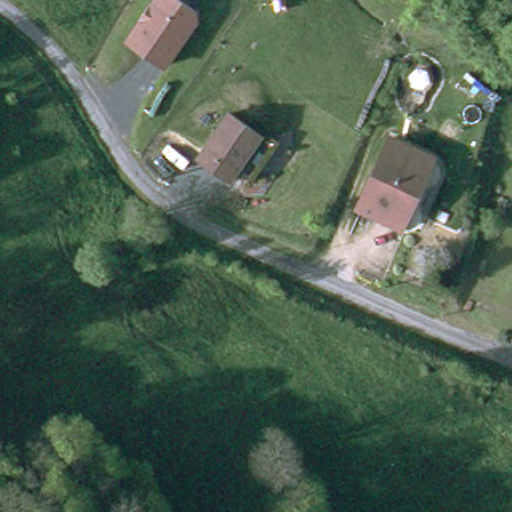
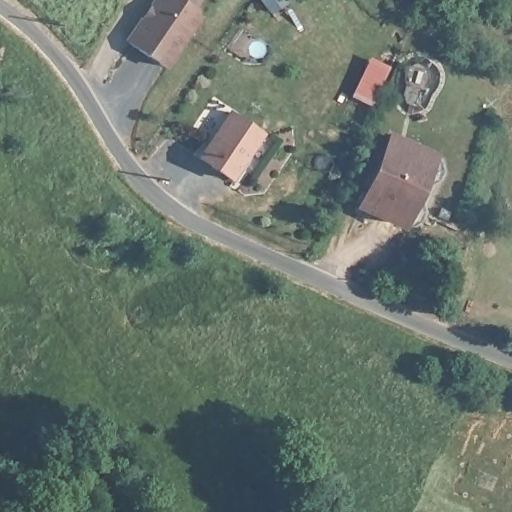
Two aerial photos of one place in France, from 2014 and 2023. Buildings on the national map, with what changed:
unchanged [(195,20),(161,66),(125,41),(153,0),(181,0),(193,9),(195,20)]
new [(371,106),(349,96),(369,56),(390,66),(371,106)]
unchanged [(218,109),(249,131),(216,176),(186,154),(218,109)]
unchanged [(386,133),(429,154),(433,161),(433,171),(425,177),(416,178),(407,197),(412,205),(412,215),(405,221),(395,223),(353,203),(386,133)]

